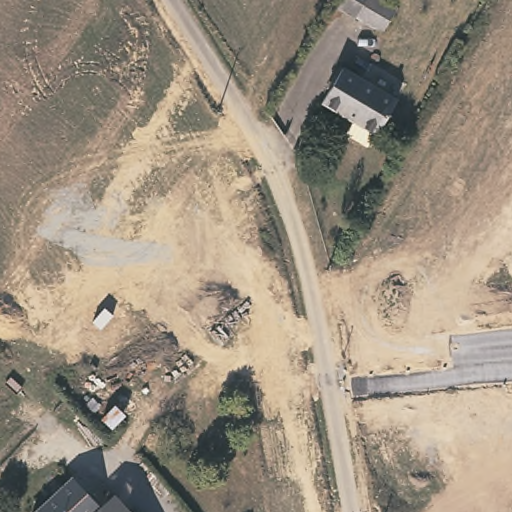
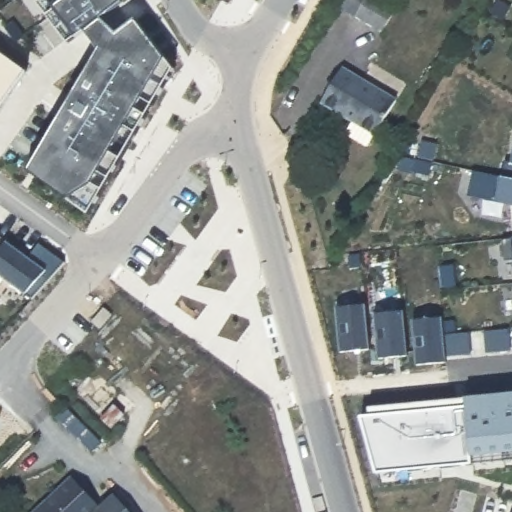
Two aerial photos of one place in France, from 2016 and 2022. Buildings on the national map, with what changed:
new [(85,29),(68,42),(49,16),(37,0),(118,0),(121,4),(102,17),(118,34),(136,21),(167,59),(163,63),(174,71),(88,213),(67,199),(30,171),(99,50),(85,29)]
unchanged [(382,36),(337,6),(340,0),(382,0),(397,10),(382,36)]
unchanged [(392,96),(372,133),(368,131),(361,144),(342,133),(349,120),(316,99),(338,64),(392,96)]
new [(0,237),(1,238),(0,238),(0,237)]
new [(26,294),(0,275),(0,252),(7,241),(30,257),(40,244),(64,263),(34,297),(26,294)]
unchanged [(370,350),(341,354),(336,308),(366,306),(370,350)]
new [(406,311),(409,353),(378,355),(376,315),(406,311)]
new [(445,322),(449,367),(418,370),(414,325),(445,322)]
new [(471,455),(472,463),(377,473),(361,417),(372,415),(368,407),(463,398),(512,393),(512,450),(471,455)]
unchanged [(82,493),(96,480),(114,499),(99,512),(98,512),(43,512),(73,484),(82,493)]
unchanged [(117,499),(130,512),(103,512),(117,499)]

